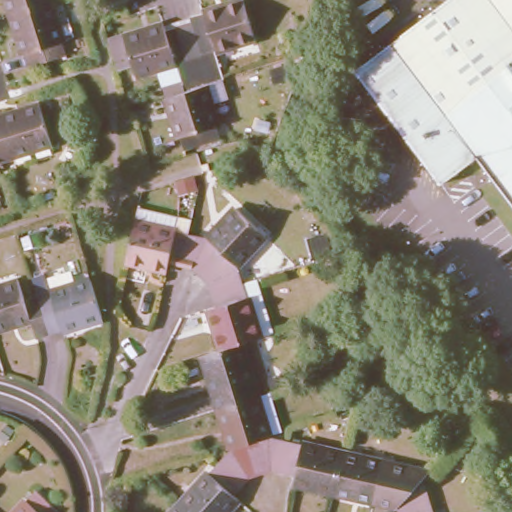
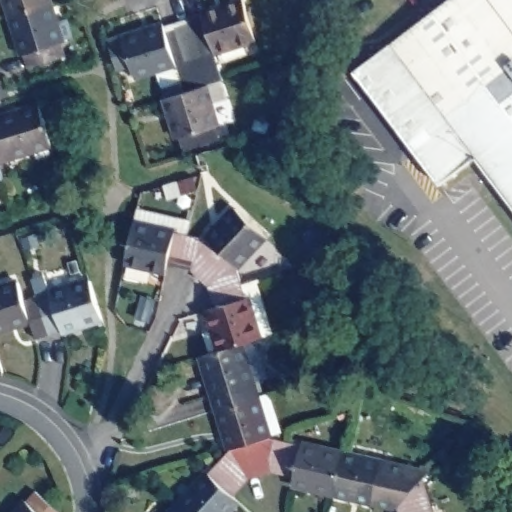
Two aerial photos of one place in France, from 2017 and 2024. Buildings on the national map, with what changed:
unchanged [(7,0),(42,0),(10,10),(7,0)]
unchanged [(49,0),(65,51),(27,64),(10,10),(42,0),(49,0)]
unchanged [(183,88),(175,58),(134,70),(123,34),(163,21),(175,18),(190,13),(203,10),(234,0),(244,0),(255,35),(215,46),(223,75),(210,79),(205,81),(217,122),(180,134),(167,92),(183,88)]
unchanged [(435,180),(402,134),(370,156),(321,86),(441,0),(512,0),(512,210),(472,155),(435,180)]
unchanged [(50,145),(0,159),(0,119),(39,107),(50,145)]
unchanged [(205,239),(235,209),(265,235),(237,265),(208,285),(190,268),(205,239)]
unchanged [(134,223),(188,235),(205,239),(190,268),(167,263),(166,271),(125,261),(134,223)]
unchanged [(208,308),(215,306),(208,285),(237,265),(242,285),(258,338),(241,344),(220,350),(208,308)]
unchanged [(47,336),(35,298),(90,282),(100,319),(60,331),(47,336)]
unchanged [(0,329),(0,288),(17,284),(22,302),(35,298),(47,336),(33,340),(28,321),(0,329)]
unchanged [(220,350),(241,344),(257,397),(219,409),(202,356),(220,350)]
unchanged [(270,437),(273,471),(252,478),(232,452),(219,409),(257,397),(270,437)]
unchanged [(295,476),(273,471),(270,437),(288,441),(343,454),(334,494),(292,485),(295,476)]
unchanged [(234,496),(240,502),(231,512),(191,512),(182,504),(219,465),(232,452),(252,478),(234,496)]
unchanged [(382,463),(381,470),(423,481),(398,509),(375,503),(334,494),(343,454),(382,463)]
unchanged [(398,509),(423,481),(433,512),(399,512),(398,509)]
unchanged [(57,512),(17,512),(35,491),(57,512)]
unchanged [(182,504),(191,512),(175,512),(182,504)]

